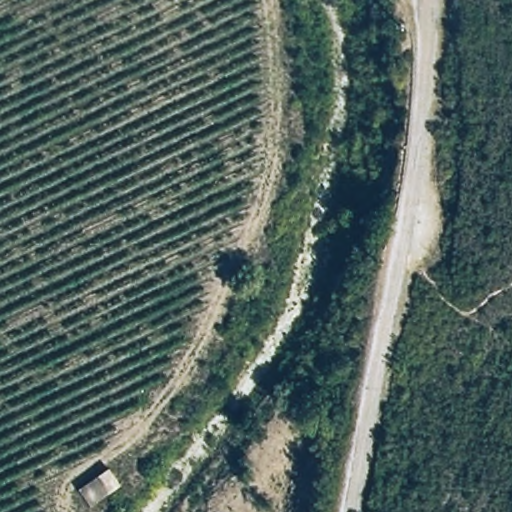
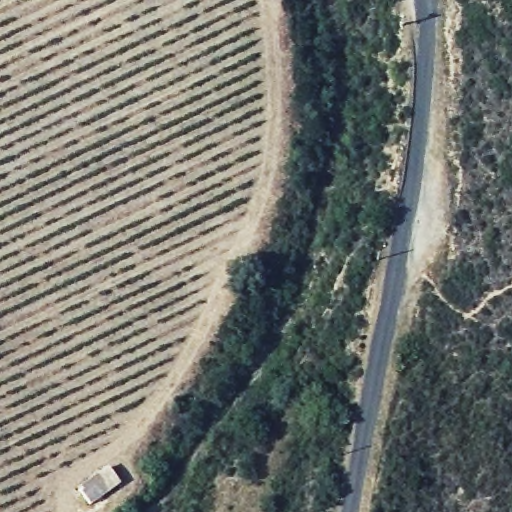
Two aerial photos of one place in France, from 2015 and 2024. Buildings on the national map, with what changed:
unchanged [(119,486),(89,507),(74,488),(106,466),(119,486)]

